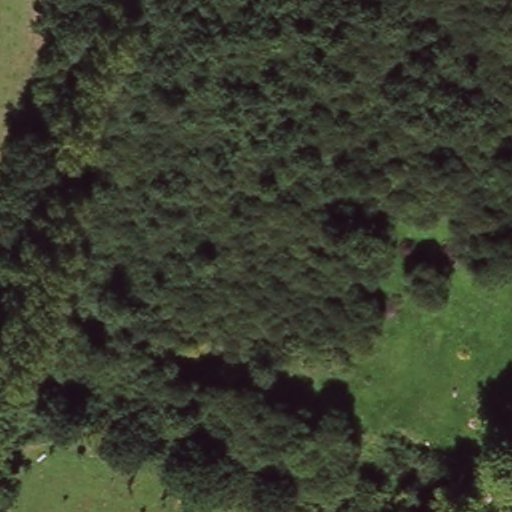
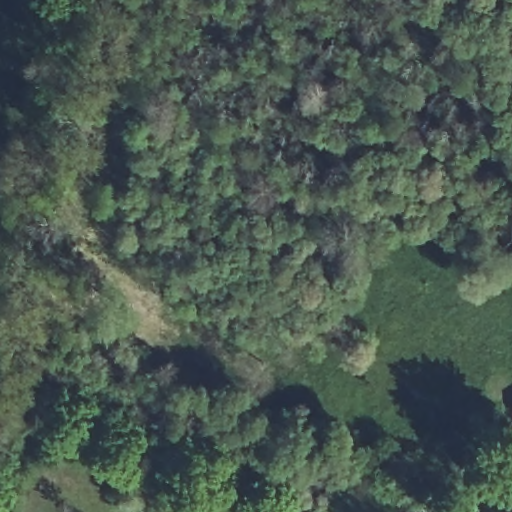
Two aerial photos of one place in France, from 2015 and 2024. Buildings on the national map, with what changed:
[]

